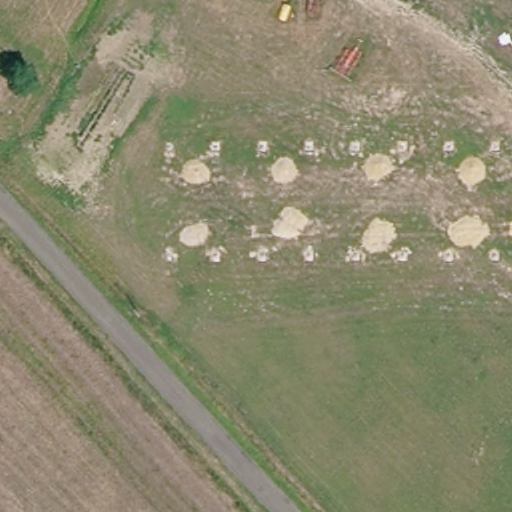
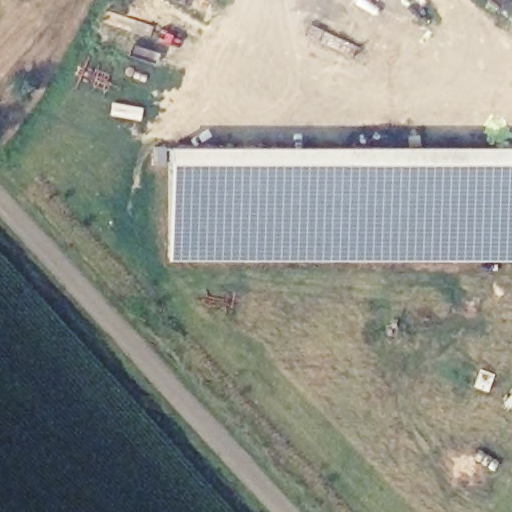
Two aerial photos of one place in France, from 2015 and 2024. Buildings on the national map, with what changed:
new [(512,146),(512,261),(166,260),(168,145),(512,146)]

